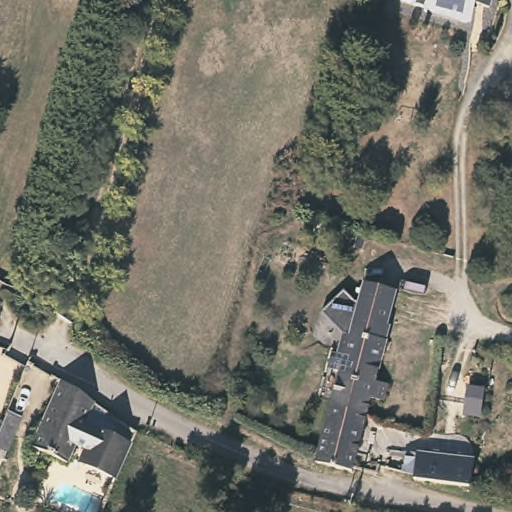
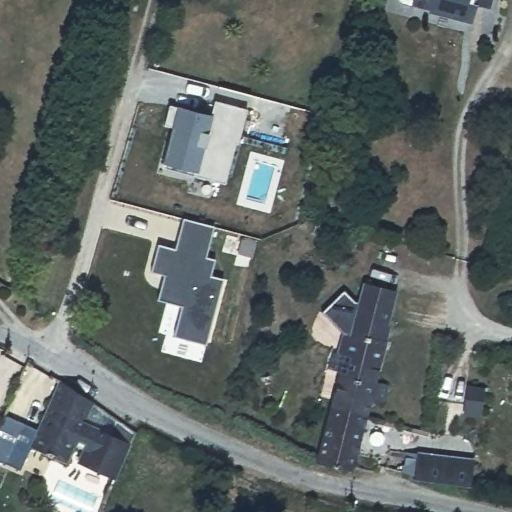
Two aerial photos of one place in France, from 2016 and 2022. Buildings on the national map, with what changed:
unchanged [(482,9),(466,5),(461,23),(422,14),(423,12),(394,5),(392,1),(392,0),(485,0),(482,9)]
new [(224,182),(196,174),(162,167),(164,162),(177,106),(211,115),(215,101),(247,109),(224,182)]
new [(174,333),(182,297),(164,292),(167,276),(151,272),(157,244),(176,249),(184,219),(214,227),(206,256),(216,260),(212,276),(222,279),(205,344),(174,333)]
unchanged [(336,367),(323,364),(328,347),(340,351),(346,330),(340,328),(325,303),(352,287),(360,300),(364,301),(369,281),(392,287),(383,321),(387,320),(372,377),(384,380),(380,397),(367,393),(363,411),(327,401),(336,367)]
unchanged [(79,459),(71,456),(63,474),(27,457),(57,390),(130,441),(110,489),(85,478),(74,472),(79,459)]
unchanged [(363,411),(351,457),(348,467),(312,457),(327,401),(363,411)]
unchanged [(19,419),(7,445),(0,443),(0,426),(6,413),(19,419)]
unchanged [(472,462),(475,463),(470,488),(416,478),(416,473),(405,472),(407,452),(472,462)]

